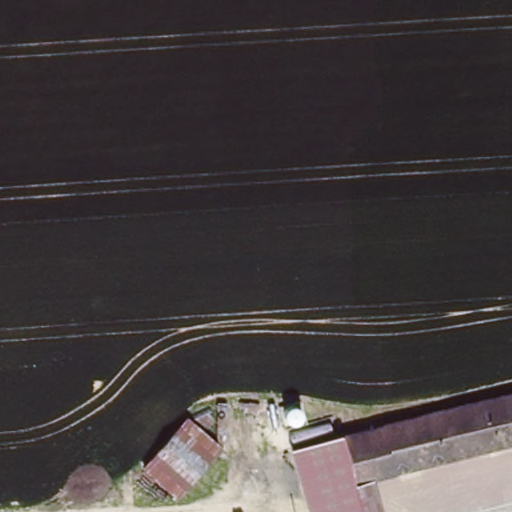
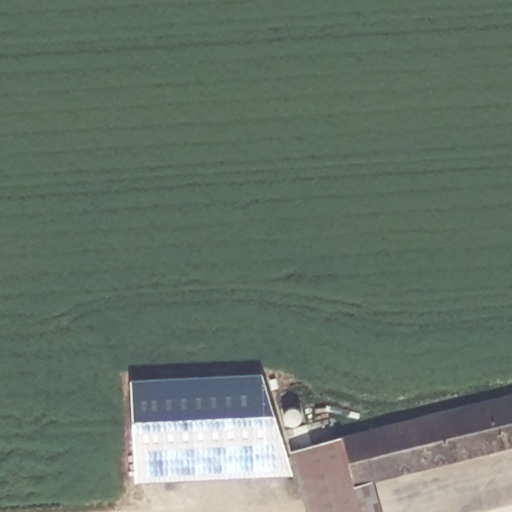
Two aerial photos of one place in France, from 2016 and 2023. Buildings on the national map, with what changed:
new [(136,480),(130,377),(261,372),(293,473),(136,480)]
unchanged [(336,439),(512,395),(512,448),(373,482),(348,488),(336,441),(336,439)]
unchanged [(348,488),(373,482),(383,512),(309,512),(290,452),(336,441),(348,488)]

